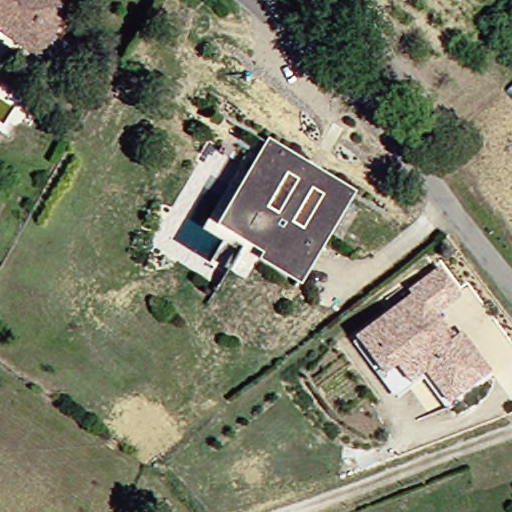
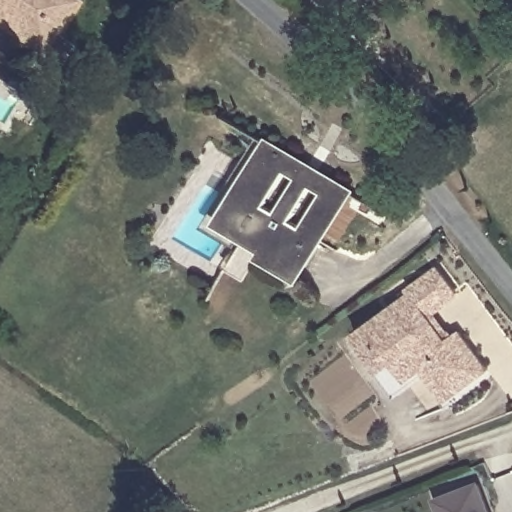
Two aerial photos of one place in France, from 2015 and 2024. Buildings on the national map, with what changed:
unchanged [(29,51),(3,35),(0,33),(0,0),(62,0),(42,31),(60,42),(41,71),(24,59),(29,51)]
unchanged [(234,164),(247,142),(260,150),(340,197),(288,283),(232,250),(236,243),(212,229),(246,172),(234,164)]
unchanged [(410,287),(440,265),(458,290),(428,310),(413,291),(410,287)]
unchanged [(369,350),(356,332),(413,291),(428,310),(449,339),(461,331),(490,370),(447,400),(424,367),(408,377),(395,387),(369,350)]
new [(435,503),(476,487),(486,512),(438,512),(435,503)]

